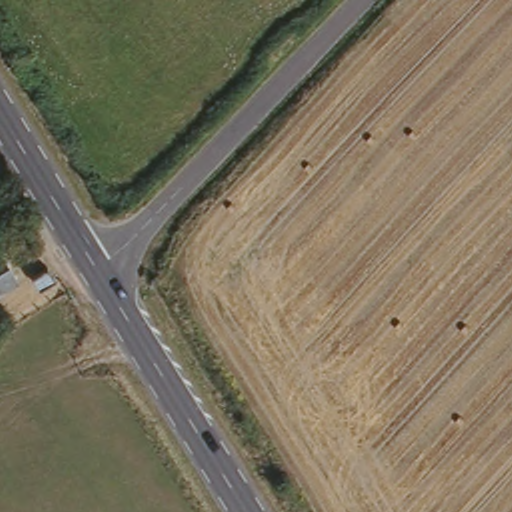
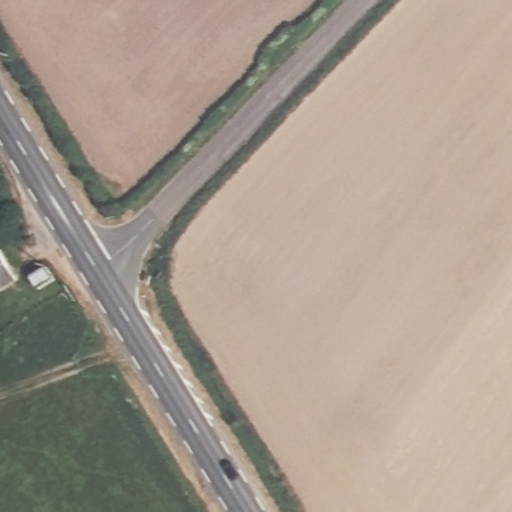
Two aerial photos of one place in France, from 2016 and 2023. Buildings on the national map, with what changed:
unchanged [(15,280),(0,290),(0,256),(15,280)]
unchanged [(53,284),(40,292),(33,278),(44,270),(53,284)]

